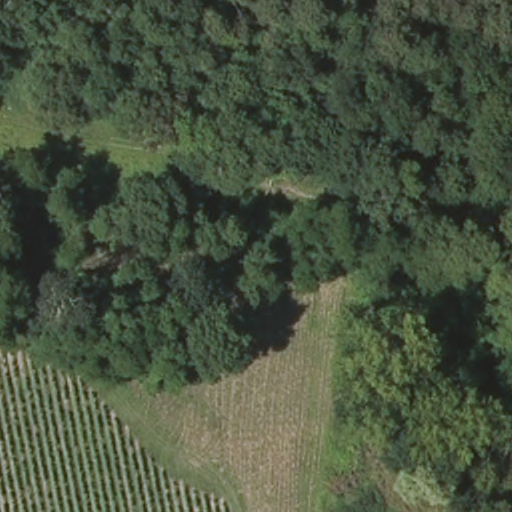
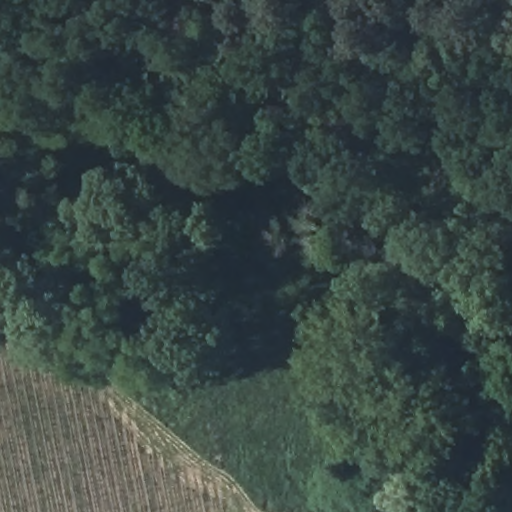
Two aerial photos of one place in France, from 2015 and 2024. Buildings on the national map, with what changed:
[]

